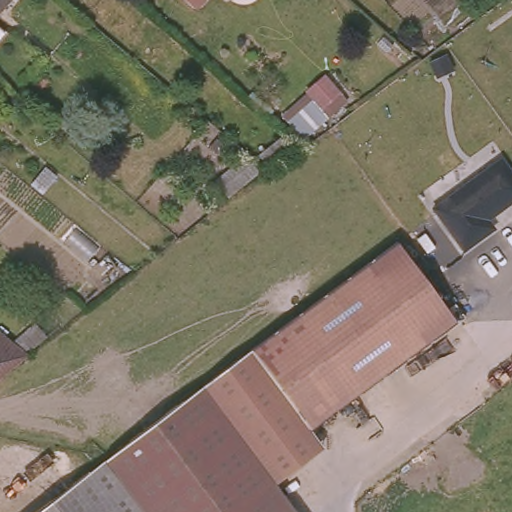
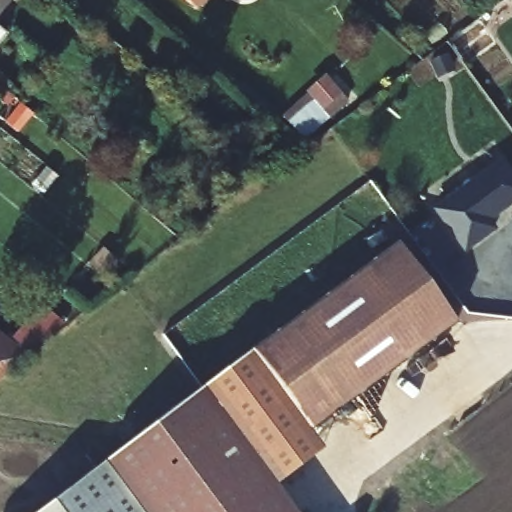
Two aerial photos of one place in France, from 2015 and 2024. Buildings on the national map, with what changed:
unchanged [(0,12),(0,0),(11,0),(0,12)]
unchanged [(194,9),(184,0),(202,0),(194,9)]
unchanged [(230,2),(229,0),(232,0),(230,2)]
unchanged [(323,80),(336,95),(318,111),(305,96),(323,80)]
unchanged [(282,138),(290,149),(268,166),(260,155),(282,138)]
unchanged [(501,159),(512,173),(512,201),(487,219),(494,228),(465,249),(434,208),(501,159)]
unchanged [(312,430),(252,351),(398,243),(456,323),(312,430)]
unchanged [(50,338),(30,354),(30,355),(0,379),(0,329),(16,342),(36,325),(50,338)]
unchanged [(223,411),(220,409),(196,388),(252,351),(312,430),(325,447),(292,472),(277,484),(223,411)]
unchanged [(298,512),(145,512),(104,458),(196,388),(220,409),(298,512)]
unchanged [(145,512),(33,512),(104,458),(145,512)]

